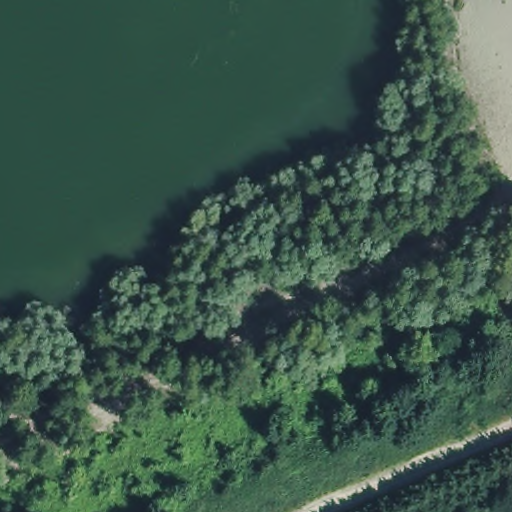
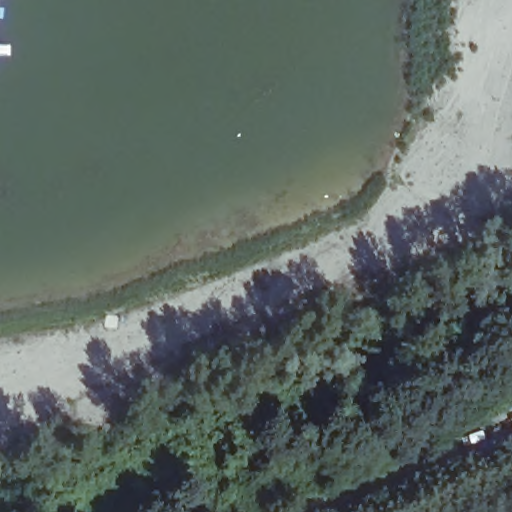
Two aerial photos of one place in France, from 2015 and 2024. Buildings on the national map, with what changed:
[]

